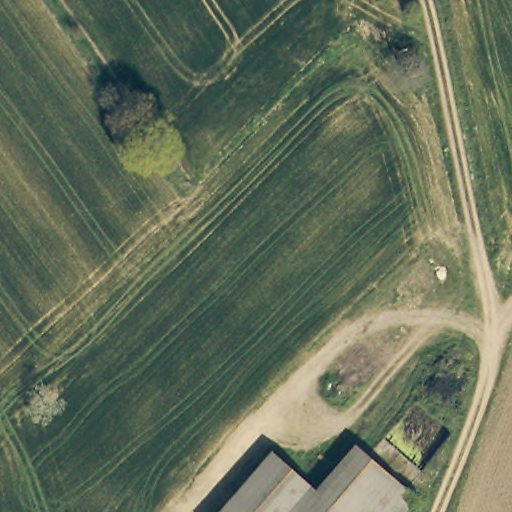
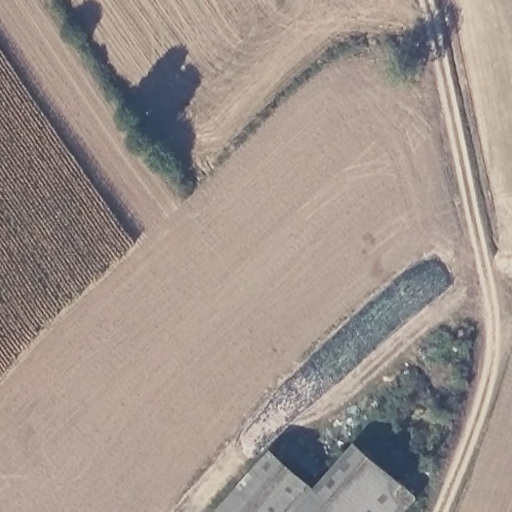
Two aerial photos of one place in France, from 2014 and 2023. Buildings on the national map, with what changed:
unchanged [(311,490),(351,445),(411,498),(399,512),(292,512),(311,490)]
unchanged [(268,451),(311,490),(292,512),(215,512),(268,451)]

